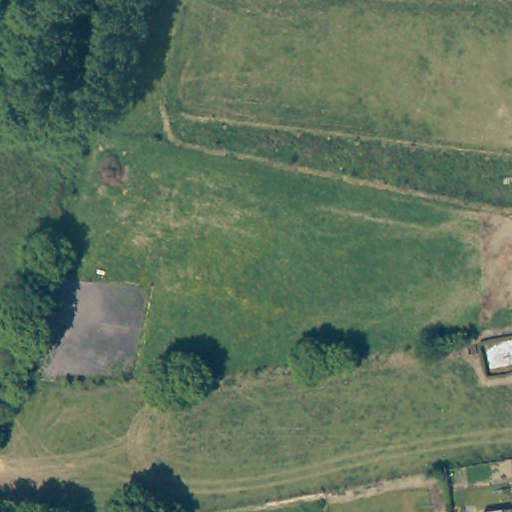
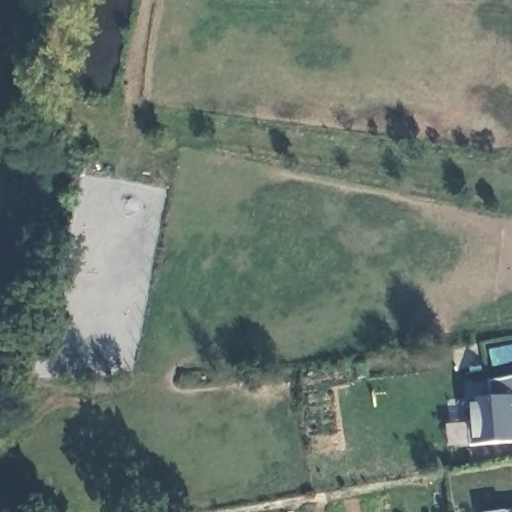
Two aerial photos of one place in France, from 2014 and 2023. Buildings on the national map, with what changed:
new [(512,376),(512,442),(474,443),(471,400),(488,398),(489,381),(512,376)]
unchanged [(484,506),(512,503),(512,512),(485,512),(484,506)]

